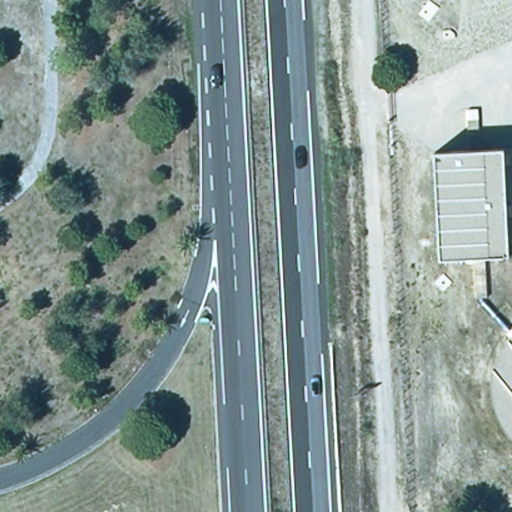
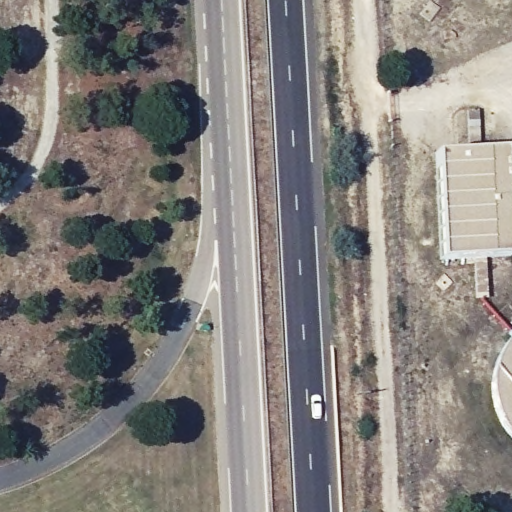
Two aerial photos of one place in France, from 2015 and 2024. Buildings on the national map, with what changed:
unchanged [(477,296),(474,256),(442,258),(436,150),(468,147),(467,107),(479,106),(480,146),(505,145),(512,251),(511,254),(487,255),(489,295),(477,296)]

